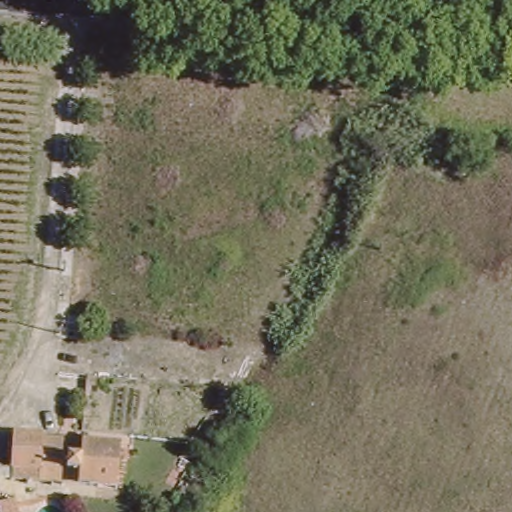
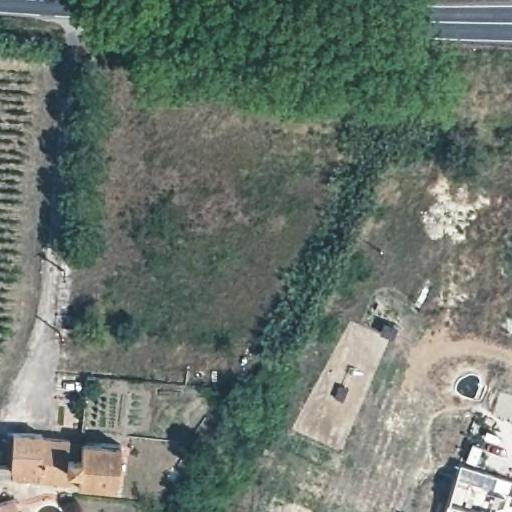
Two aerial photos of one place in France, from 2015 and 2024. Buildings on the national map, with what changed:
unchanged [(78,440),(119,443),(114,488),(36,482),(36,472),(8,470),(10,435),(38,437),(38,455),(57,456),(58,452),(76,453),(78,440)]
new [(512,479),(512,512),(444,512),(461,462),(512,479)]

